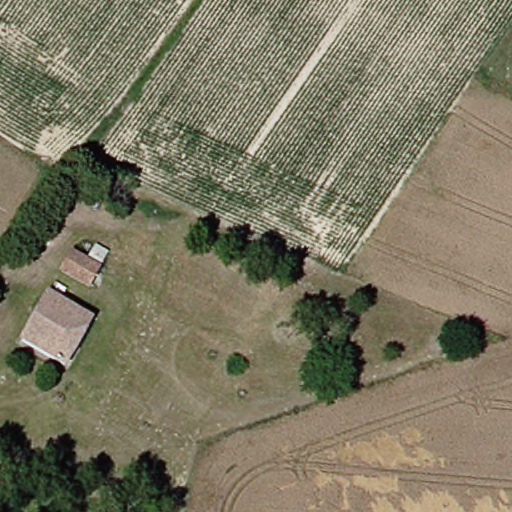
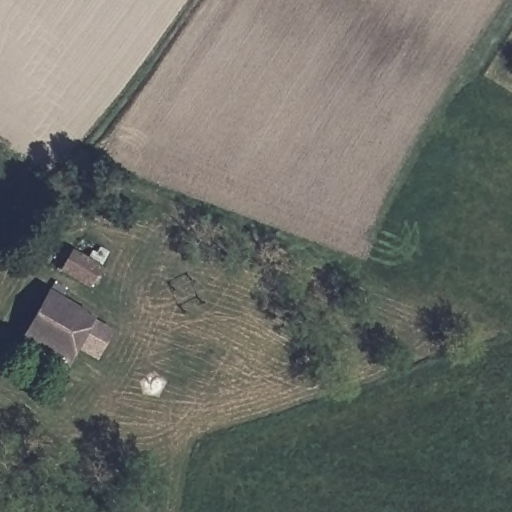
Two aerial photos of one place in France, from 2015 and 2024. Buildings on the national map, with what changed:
unchanged [(88,283),(60,266),(70,250),(100,267),(88,283)]
unchanged [(61,360),(15,333),(42,288),(87,317),(61,360)]

